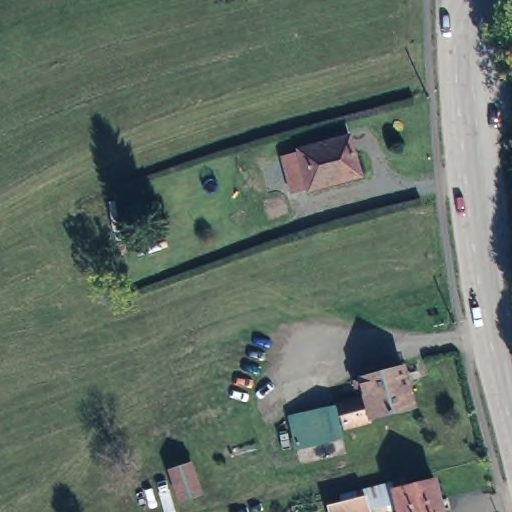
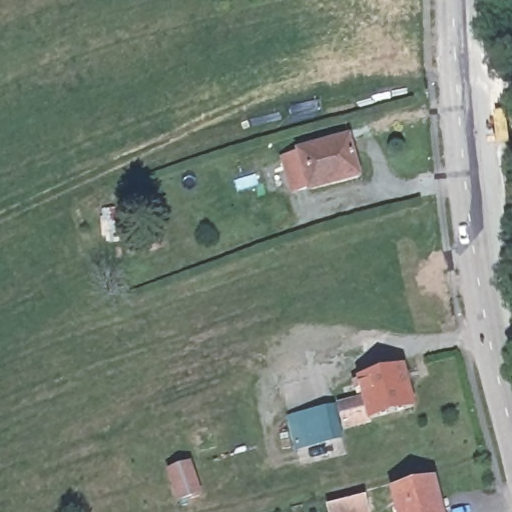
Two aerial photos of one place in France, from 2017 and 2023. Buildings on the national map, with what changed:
unchanged [(292,154),(292,151),(343,137),(354,176),(304,191),(302,188),(286,192),(277,158),(292,154)]
unchanged [(419,411),(380,422),(350,431),(345,410),(370,403),(366,392),(360,392),(359,387),(408,372),(419,411)]
unchanged [(338,412),(344,432),(317,440),(311,419),(338,412)]
unchanged [(190,465),(199,492),(180,499),(170,471),(190,465)]
unchanged [(429,470),(438,512),(395,512),(388,480),(429,470)]
unchanged [(360,486),(362,499),(327,507),(324,493),(360,486)]

